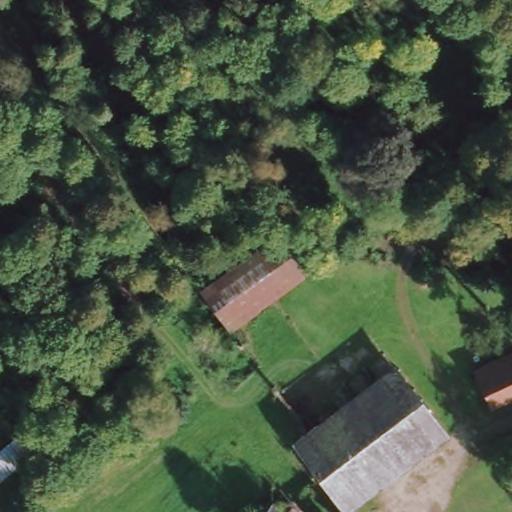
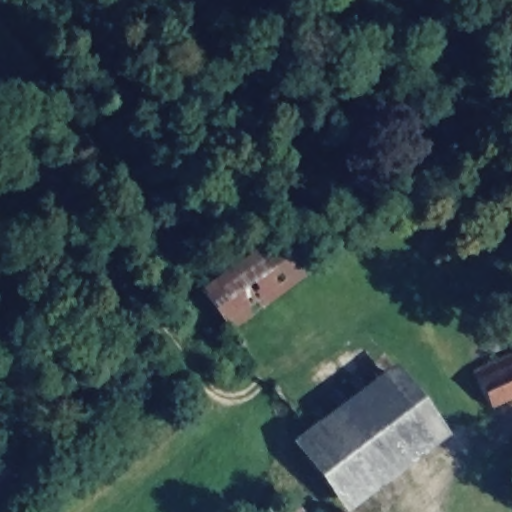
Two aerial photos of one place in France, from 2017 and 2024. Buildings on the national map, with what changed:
unchanged [(278,224),(309,264),(231,322),(200,284),(278,224)]
unchanged [(462,346),(498,328),(506,344),(470,362),(462,346)]
unchanged [(471,366),(512,347),(512,391),(488,402),(471,366)]
unchanged [(316,423),(402,356),(454,425),(354,501),(353,500),(303,432),(316,423)]
unchanged [(17,431),(32,448),(0,475),(0,444),(17,431)]
unchanged [(245,506),(260,488),(280,512),(249,512),(245,506)]

